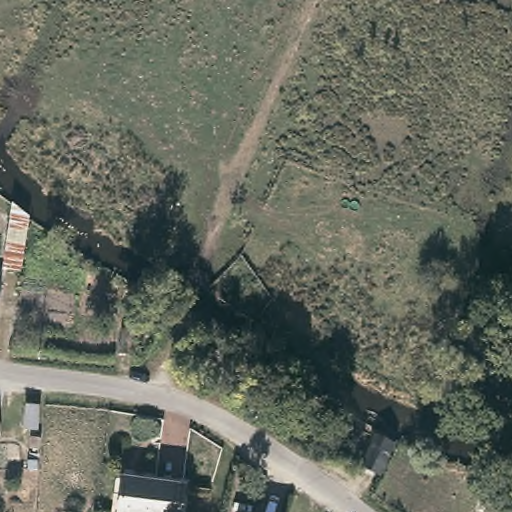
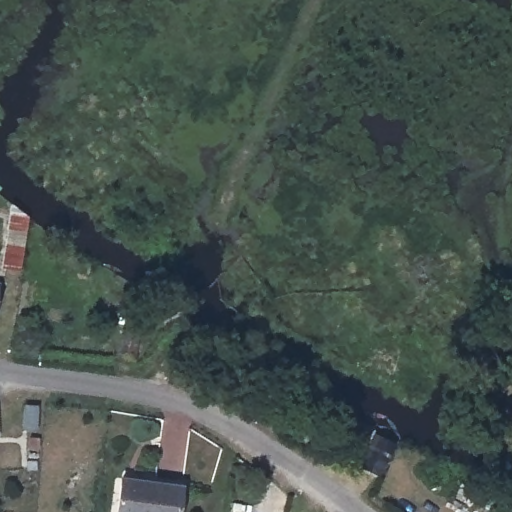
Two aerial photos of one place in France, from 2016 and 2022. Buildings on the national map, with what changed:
unchanged [(10,202),(31,216),(24,269),(0,267),(10,202)]
unchanged [(125,315),(121,360),(104,359),(106,332),(113,332),(114,313),(125,315)]
unchanged [(177,512),(118,512),(125,479),(182,492),(177,512)]

